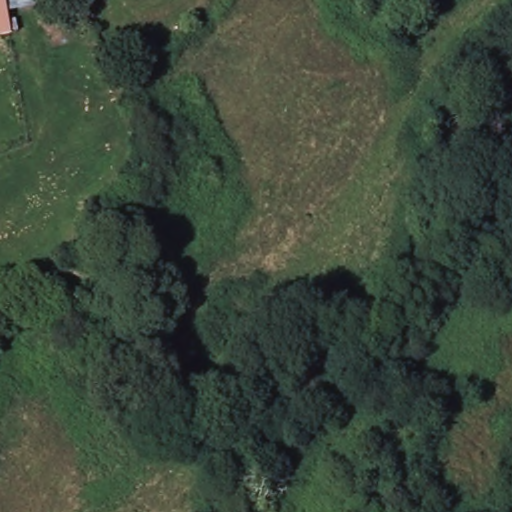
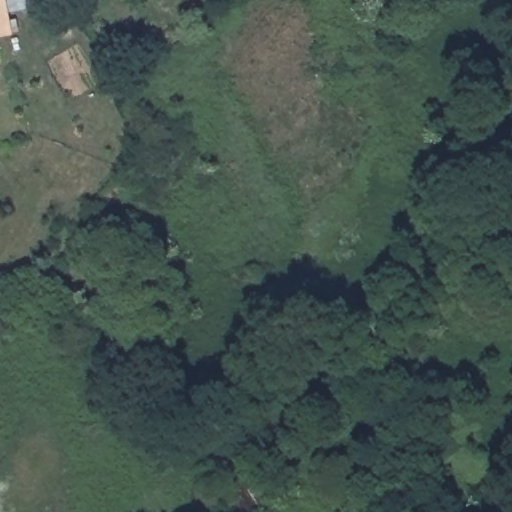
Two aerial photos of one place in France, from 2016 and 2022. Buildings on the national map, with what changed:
unchanged [(1,10),(8,38),(0,39),(0,0),(43,0),(1,10)]

